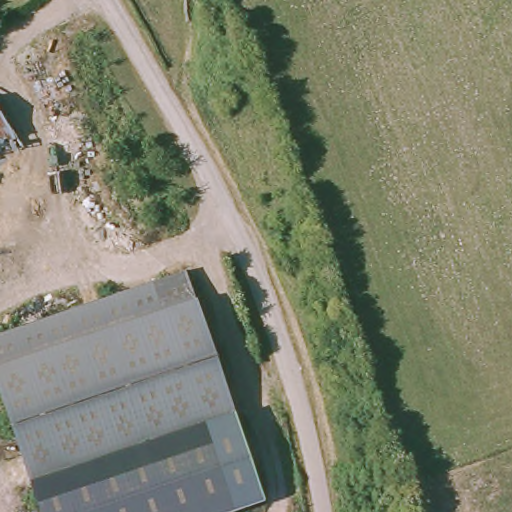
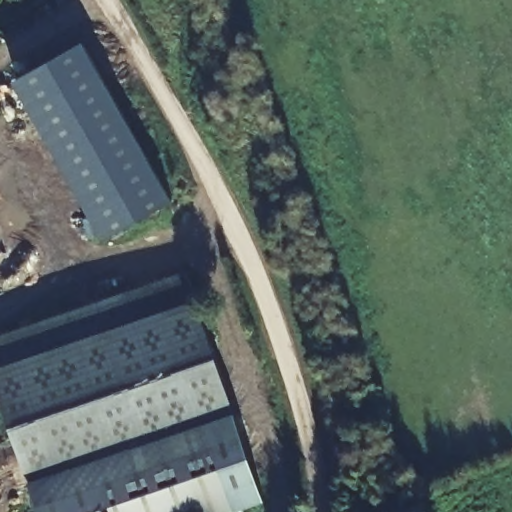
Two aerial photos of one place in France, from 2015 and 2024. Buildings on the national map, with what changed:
new [(104,237),(15,80),(85,40),(172,198),(104,237)]
demolished [(0,112),(23,151),(24,152),(0,166),(0,112)]
unchanged [(33,485),(0,389),(0,338),(187,275),(235,416),(33,485)]
unchanged [(235,416),(265,502),(235,512),(42,512),(33,485),(235,416)]

